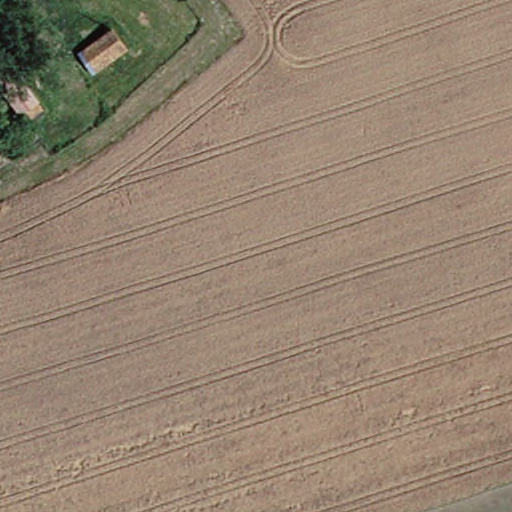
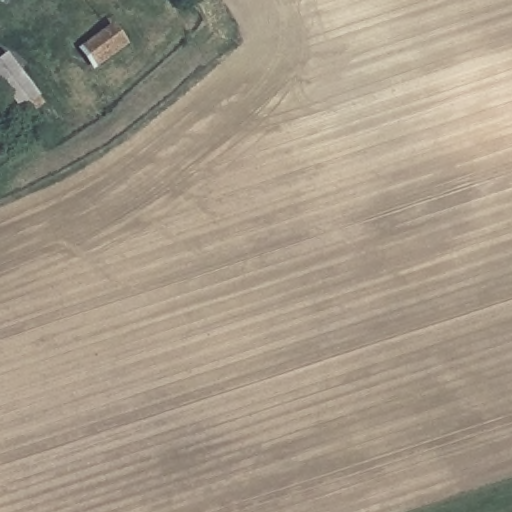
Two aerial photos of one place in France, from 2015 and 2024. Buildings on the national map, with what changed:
unchanged [(122,43),(89,66),(86,61),(78,50),(109,27),(122,43)]
unchanged [(0,88),(0,66),(5,63),(36,98),(39,100),(21,114),(17,111),(0,88)]

